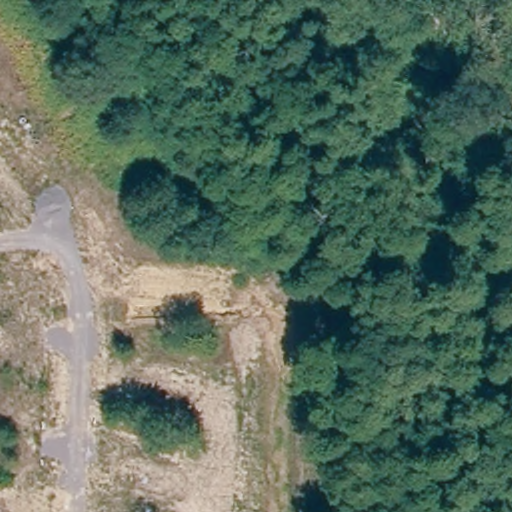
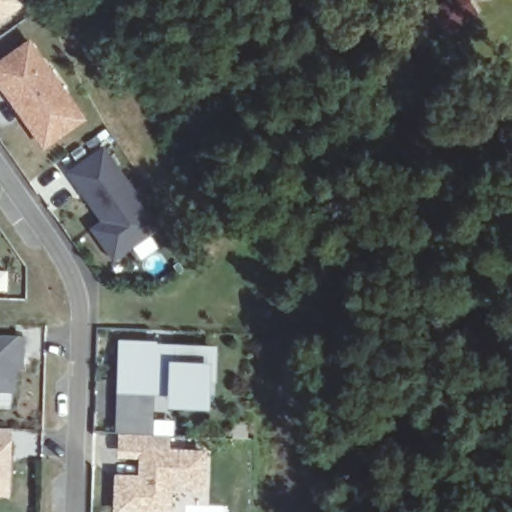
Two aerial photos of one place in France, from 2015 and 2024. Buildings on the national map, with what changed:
new [(27,0),(0,19),(0,0),(27,0)]
new [(54,65),(68,85),(89,114),(50,141),(0,71),(0,64),(35,39),(54,65)]
new [(157,228),(123,253),(102,225),(114,216),(103,200),(79,167),(111,145),(149,197),(166,221),(157,228)]
unchanged [(22,345),(22,364),(22,374),(15,373),(14,397),(0,397),(0,345),(22,345)]
new [(172,395),(153,394),(125,393),(126,373),(129,373),(129,366),(122,366),(122,347),(152,348),(152,350),(213,352),(213,370),(207,370),(206,401),(206,407),(172,406),(172,400),(172,395)]
new [(122,366),(129,366),(129,373),(126,373),(125,393),(153,394),(152,425),(152,440),(120,438),(120,424),(122,366)]
new [(11,435),(10,450),(9,487),(9,502),(0,502),(0,435),(11,435)]
new [(113,511),(114,472),(138,473),(138,454),(117,454),(117,438),(120,438),(151,439),(169,438),(169,447),(205,448),(205,486),(171,485),(169,512),(135,512),(113,511)]

